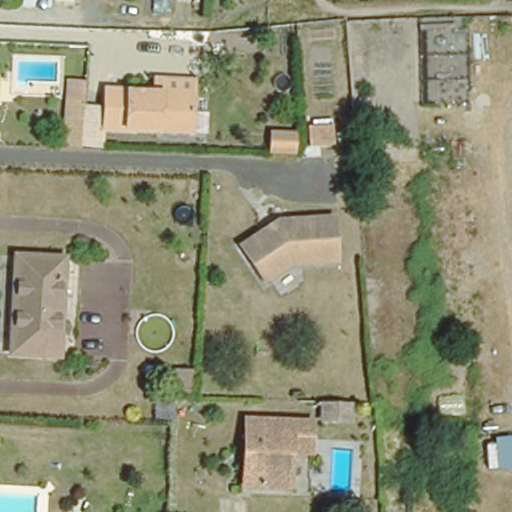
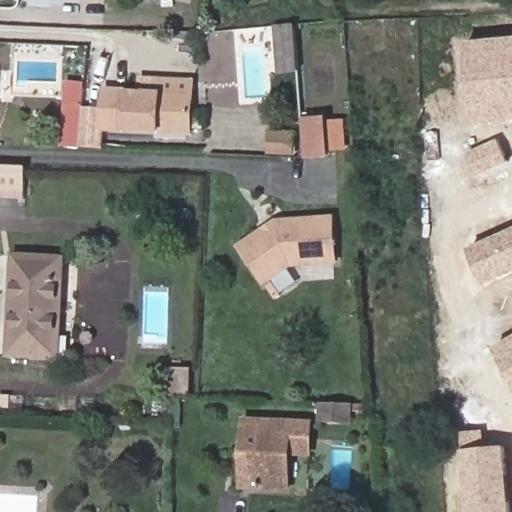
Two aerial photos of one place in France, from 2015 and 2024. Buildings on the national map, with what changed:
new [(512,122),(474,125),(466,41),(512,37),(512,122)]
unchanged [(3,80),(2,115),(0,114),(0,80),(3,80)]
unchanged [(62,147),(66,80),(86,80),(86,104),(96,104),(96,149),(62,147)]
unchanged [(107,134),(108,95),(158,97),(159,87),(196,89),(196,99),(195,137),(107,134)]
new [(325,119),(328,156),(305,157),(302,120),(325,119)]
unchanged [(270,134),(295,135),(294,157),(270,156),(270,134)]
new [(465,155),(499,140),(510,164),(477,179),(465,155)]
new [(26,165),(25,199),(0,198),(0,164),(26,165)]
unchanged [(279,217),(310,215),(331,214),(335,256),(313,258),(290,260),(263,277),(241,242),(279,217)]
new [(469,249),(512,230),(512,277),(487,288),(469,249)]
unchanged [(9,354),(15,256),(63,260),(58,356),(9,354)]
demolished [(311,300),(310,315),(252,315),(252,298),(311,300)]
new [(512,378),(495,348),(512,338),(512,378)]
unchanged [(169,394),(171,367),(193,370),(191,395),(169,394)]
unchanged [(353,422),(319,421),(320,396),(354,397),(353,422)]
unchanged [(249,456),(249,425),(317,429),(316,460),(296,459),(294,495),(257,492),(247,492),(249,456)]
new [(462,431),(484,430),(488,447),(506,446),(512,505),(512,512),(468,512),(463,451),(465,450),(462,431)]
demolished [(494,440),(512,438),(512,466),(497,470),(494,440)]

